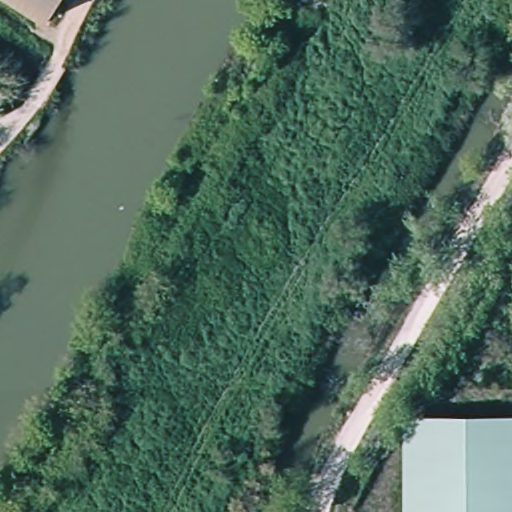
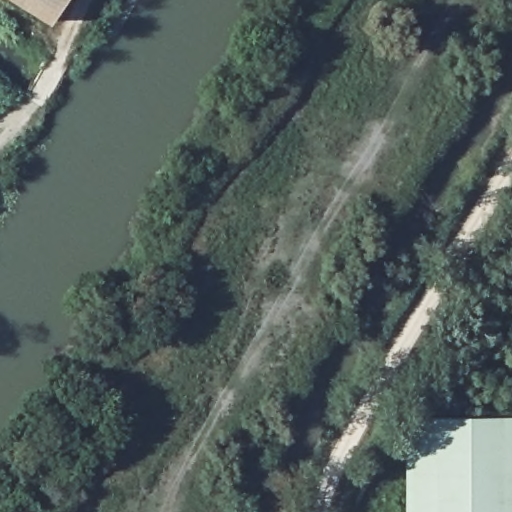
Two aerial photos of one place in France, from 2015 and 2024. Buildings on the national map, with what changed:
unchanged [(47,21),(13,0),(61,0),(47,21)]
unchanged [(512,417),(512,512),(408,512),(408,417),(512,417)]

